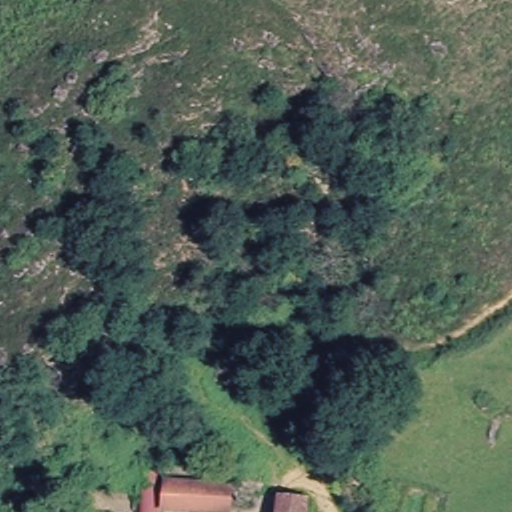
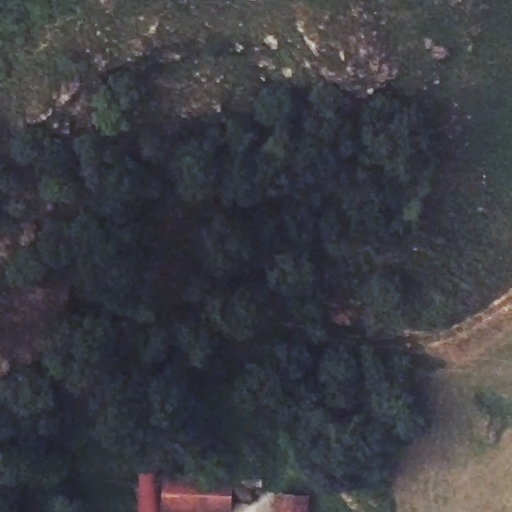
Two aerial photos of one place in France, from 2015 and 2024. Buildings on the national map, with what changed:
unchanged [(221,508),(154,502),(155,482),(221,487),(221,503),(221,508)]
unchanged [(305,505),(306,512),(279,512),(279,502),(305,505)]

